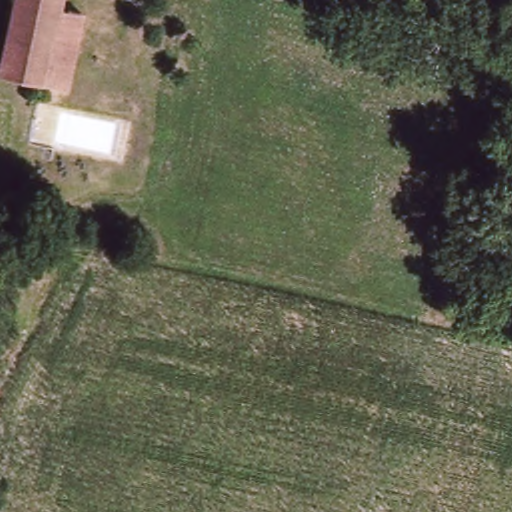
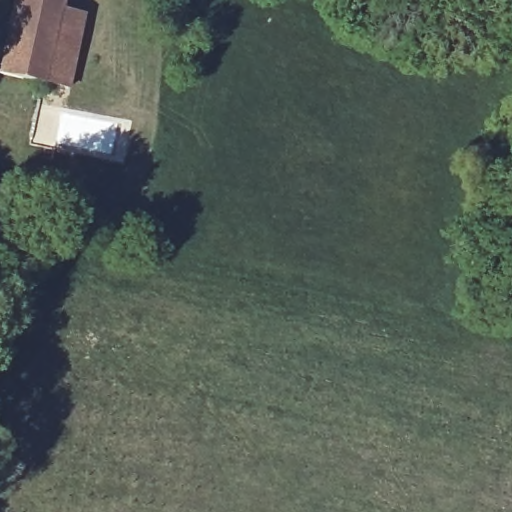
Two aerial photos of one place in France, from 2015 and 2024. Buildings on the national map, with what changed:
unchanged [(14,0),(58,0),(56,10),(81,16),(72,55),(63,90),(0,77),(0,69),(14,0)]

